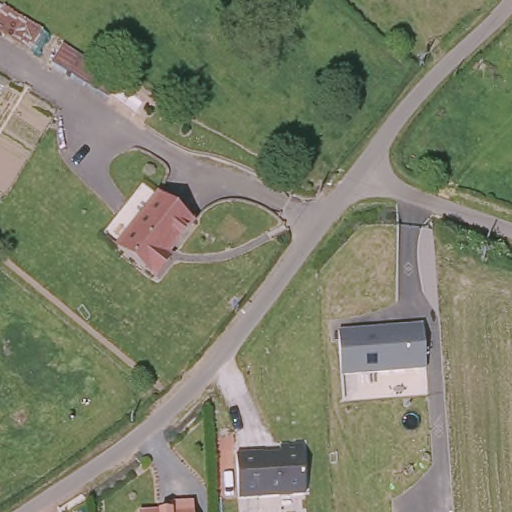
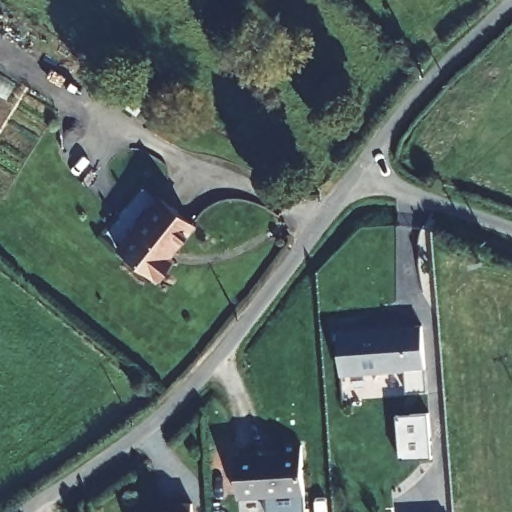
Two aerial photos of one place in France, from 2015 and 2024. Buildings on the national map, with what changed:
unchanged [(168,251),(162,245),(140,271),(114,249),(159,199),(191,224),(168,251)]
unchanged [(338,329),(424,323),(428,371),(341,377),(338,329)]
new [(431,412),(434,456),(402,459),(398,415),(431,412)]
unchanged [(237,499),(235,453),(304,448),(306,496),(237,498),(237,499)]
unchanged [(138,510),(167,509),(168,502),(196,502),(196,512),(139,512),(138,510)]

